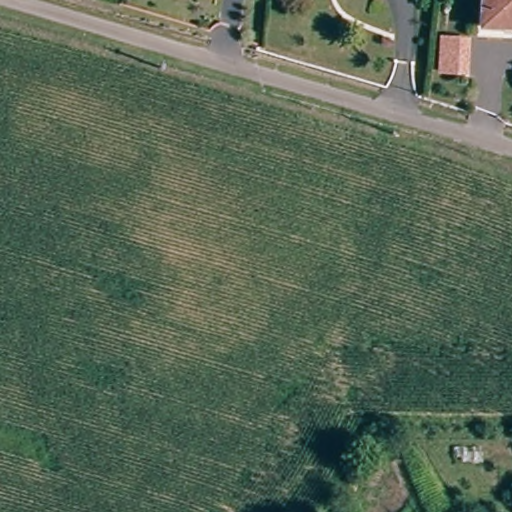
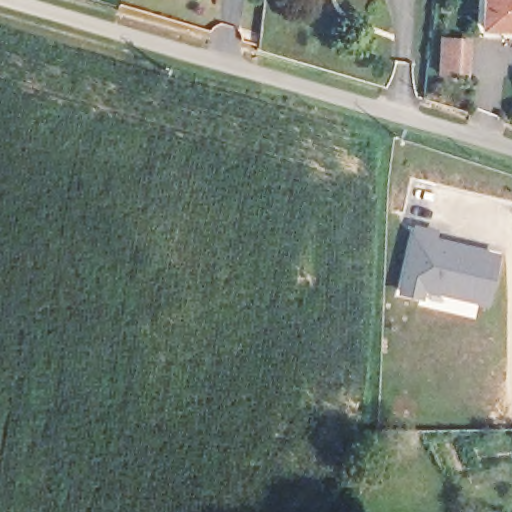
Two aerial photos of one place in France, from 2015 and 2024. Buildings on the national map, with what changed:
unchanged [(506,13),(506,20),(484,19),(485,0),(512,0),(512,13),(506,13)]
new [(440,231),(438,239),(500,254),(488,307),(424,292),(423,300),(398,294),(414,225),(440,231)]

